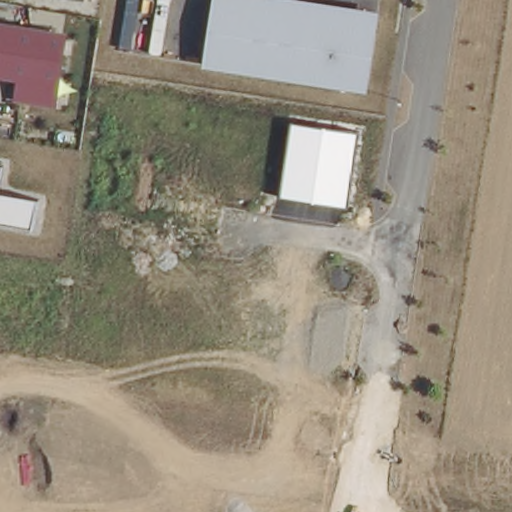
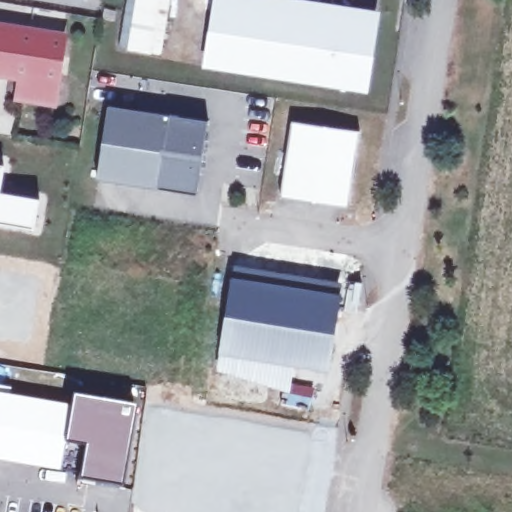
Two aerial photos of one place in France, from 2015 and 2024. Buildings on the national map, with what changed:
new [(172,0),(162,56),(120,50),(127,0),(172,0)]
unchanged [(304,0),(381,13),(371,93),(204,66),(215,0),(304,0)]
unchanged [(59,108),(15,101),(19,80),(0,77),(0,22),(70,33),(59,108)]
new [(108,105),(209,119),(197,194),(96,180),(108,105)]
new [(293,121),(359,131),(347,207),(282,197),(293,121)]
unchanged [(43,201),(35,231),(0,224),(0,166),(6,167),(2,191),(43,201)]
new [(220,354),(232,276),(342,294),(329,372),(294,364),(287,393),(217,372),(220,354)]
new [(9,396),(70,404),(70,396),(132,407),(117,485),(79,479),(84,446),(62,443),(58,471),(0,461),(0,387),(11,389),(9,396)]

